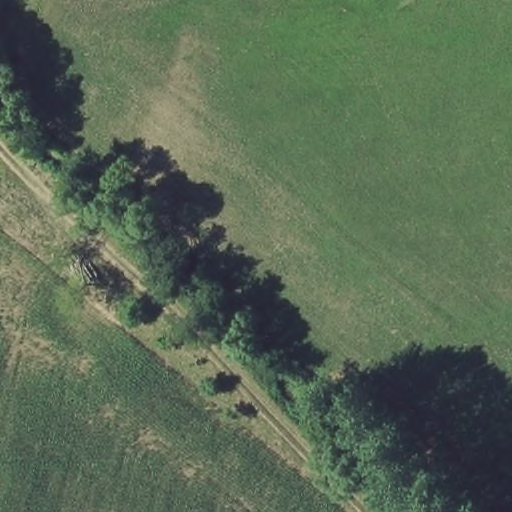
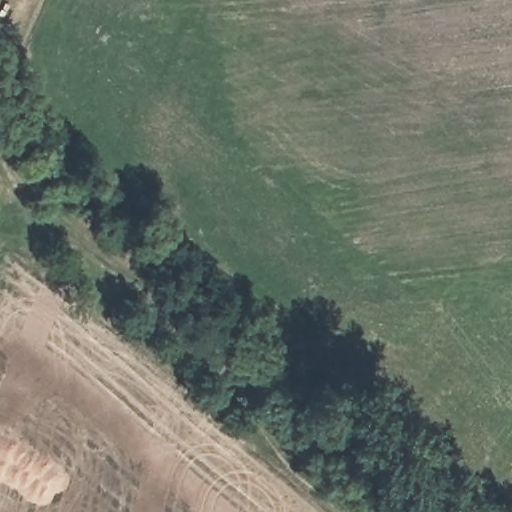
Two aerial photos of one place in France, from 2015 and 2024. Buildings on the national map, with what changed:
[]

